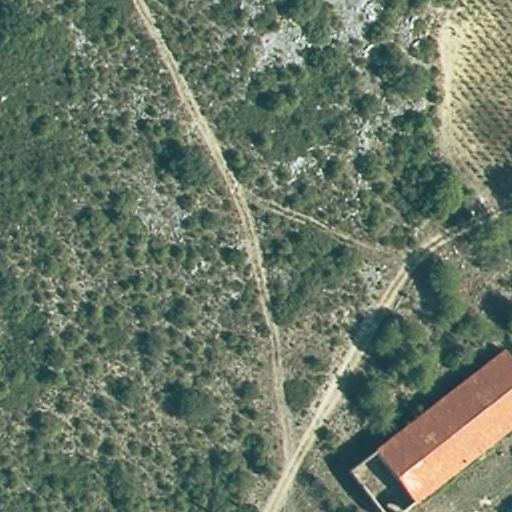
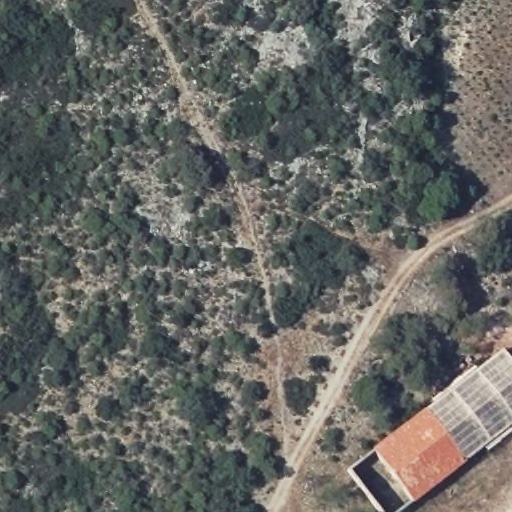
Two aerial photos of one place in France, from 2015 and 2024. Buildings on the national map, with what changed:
unchanged [(512,362),(512,423),(411,503),(367,447),(497,344),(512,362)]

